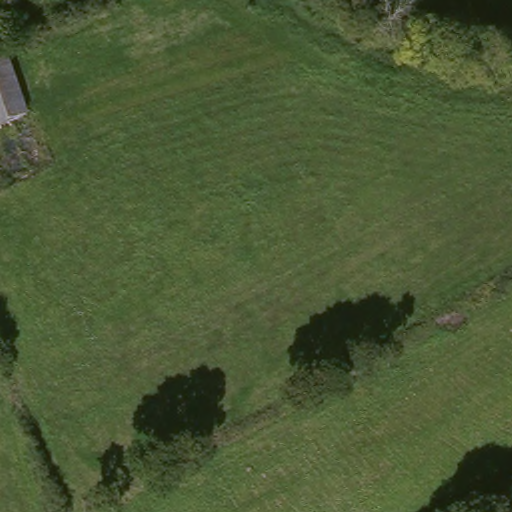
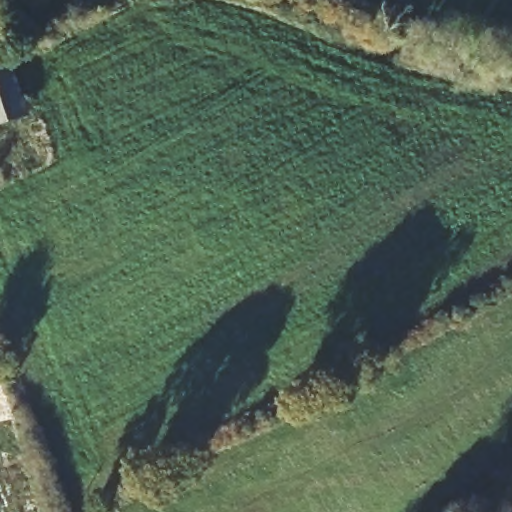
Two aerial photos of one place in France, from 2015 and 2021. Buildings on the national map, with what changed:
unchanged [(0,129),(0,47),(29,116),(0,129)]

